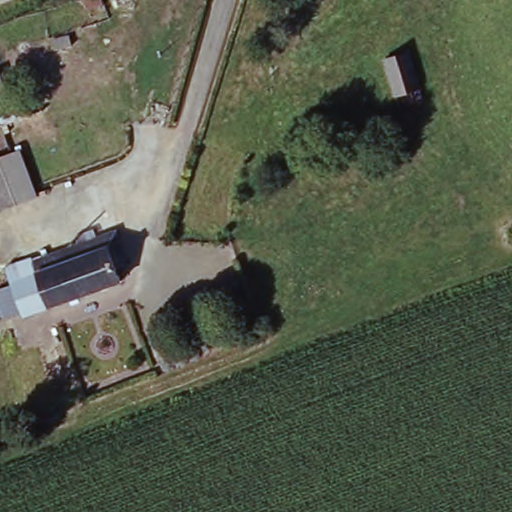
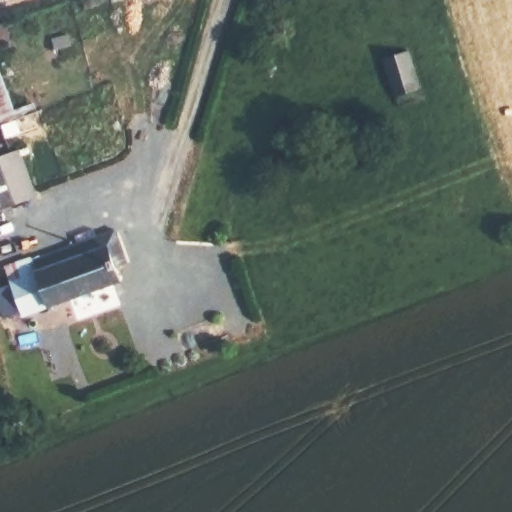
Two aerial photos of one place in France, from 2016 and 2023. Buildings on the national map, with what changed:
unchanged [(410,52),(417,90),(396,96),(386,60),(410,52)]
unchanged [(0,121),(0,110),(5,120),(0,121)]
unchanged [(36,191),(0,207),(0,157),(11,152),(17,150),(36,191)]
unchanged [(4,261),(102,232),(107,241),(126,236),(135,271),(117,277),(119,286),(19,319),(16,314),(0,321),(0,290),(11,287),(4,261)]

